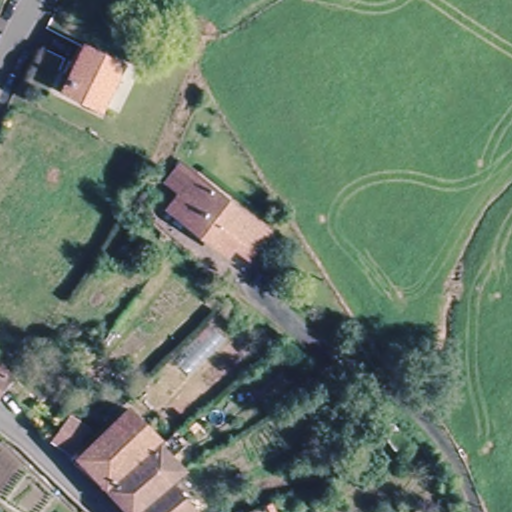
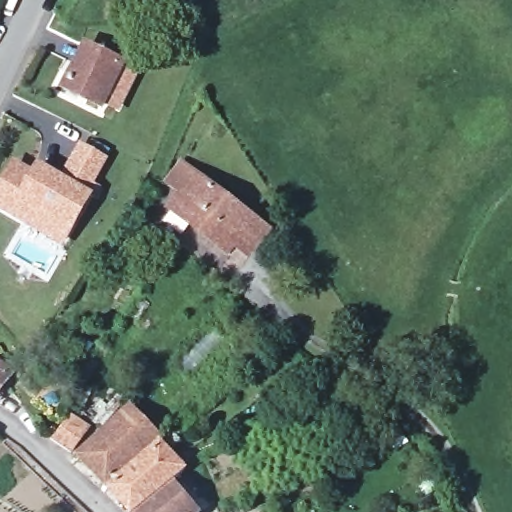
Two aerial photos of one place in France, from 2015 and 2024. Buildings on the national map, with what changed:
unchanged [(65,91),(87,47),(122,64),(101,108),(65,91)]
new [(33,171),(39,161),(62,175),(80,141),(111,159),(65,247),(0,212),(0,184),(12,161),(33,171)]
unchanged [(244,256),(230,245),(223,253),(165,209),(177,194),(162,183),(177,164),(192,175),(264,230),(244,256)]
unchanged [(2,364),(0,367),(0,362),(2,364)]
unchanged [(5,377),(0,384),(0,373),(5,377)]
unchanged [(75,458),(124,410),(154,440),(102,489),(99,493),(96,490),(100,485),(75,458)]
unchanged [(71,452),(54,440),(70,416),(88,428),(71,452)]
unchanged [(166,482),(129,512),(125,512),(104,490),(157,444),(170,433),(177,442),(165,453),(180,470),(166,482)]
unchanged [(166,482),(191,512),(129,512),(166,482)]
unchanged [(272,508),(274,512),(265,512),(272,508)]

